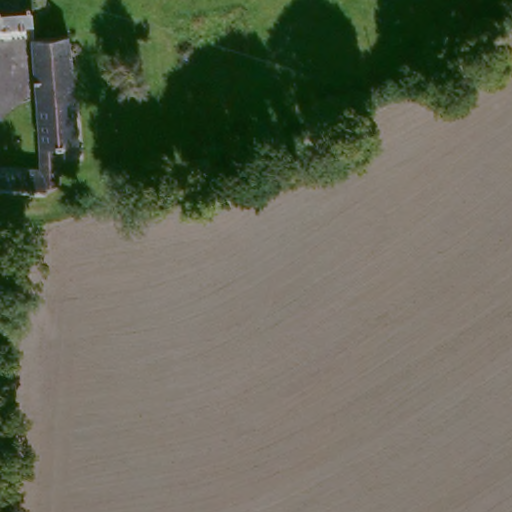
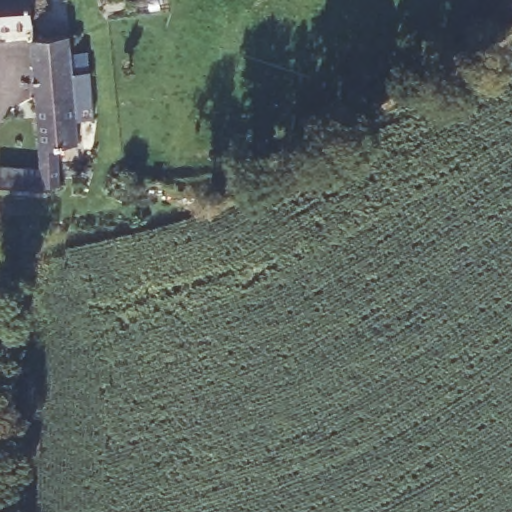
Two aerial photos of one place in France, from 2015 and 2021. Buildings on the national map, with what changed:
unchanged [(41,8),(28,10),(30,25),(27,26),(0,28),(0,0),(40,0),(41,8)]
unchanged [(26,41),(59,40),(63,40),(63,42),(72,146),(68,146),(50,148),(53,187),(38,189),(37,172),(26,41)]
unchanged [(38,189),(39,196),(0,194),(0,169),(37,172),(38,189)]

